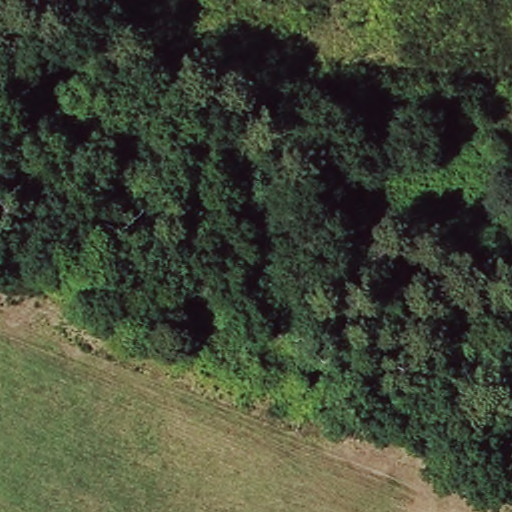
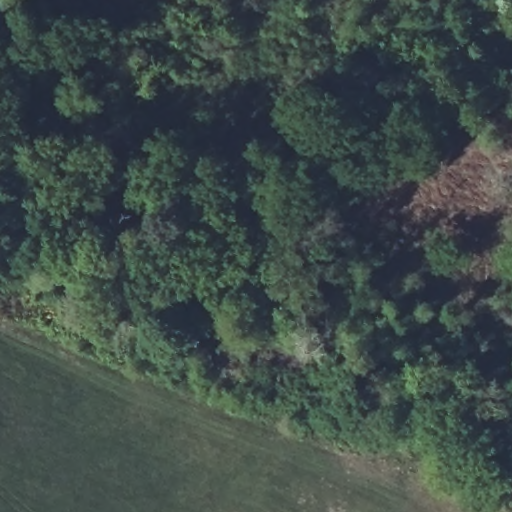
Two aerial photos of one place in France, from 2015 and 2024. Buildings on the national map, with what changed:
[]

